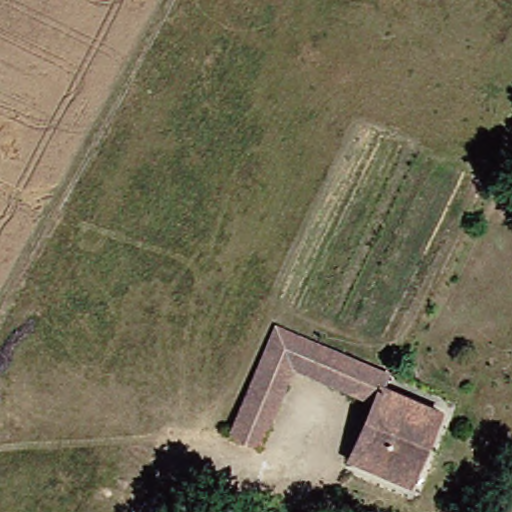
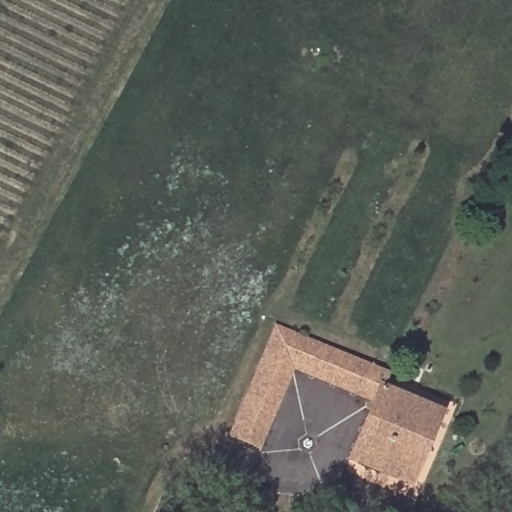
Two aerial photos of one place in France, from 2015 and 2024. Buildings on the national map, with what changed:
unchanged [(374,464),(348,457),(366,397),(282,371),(258,452),(221,441),(255,328),(376,365),(371,384),(428,402),(422,423),(406,474),(374,464)]

